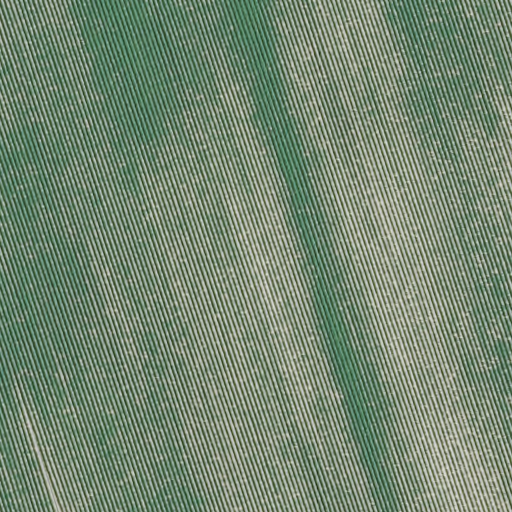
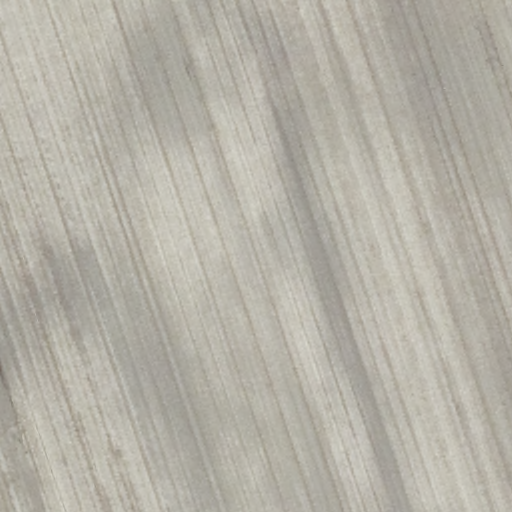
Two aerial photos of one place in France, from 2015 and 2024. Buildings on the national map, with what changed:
[]

